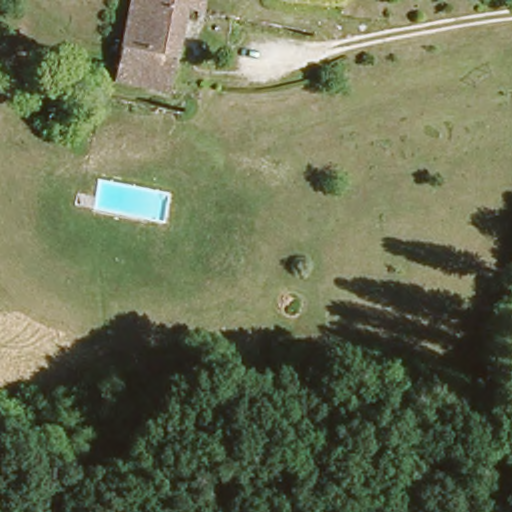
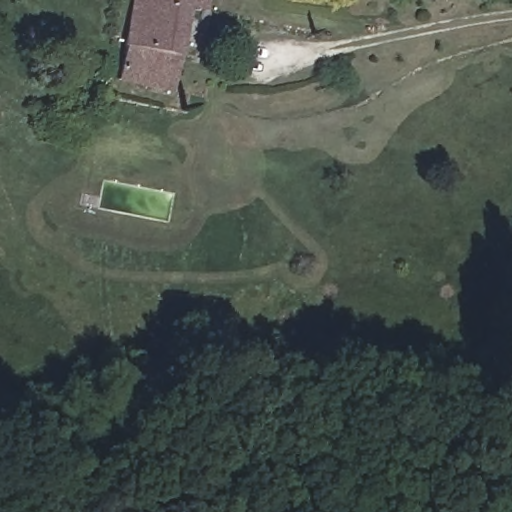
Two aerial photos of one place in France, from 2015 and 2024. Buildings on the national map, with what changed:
unchanged [(206,0),(205,5),(188,4),(178,52),(171,52),(169,91),(114,82),(128,0),(206,0)]

